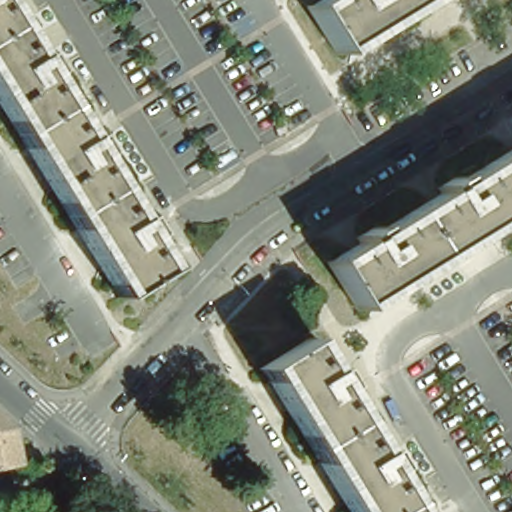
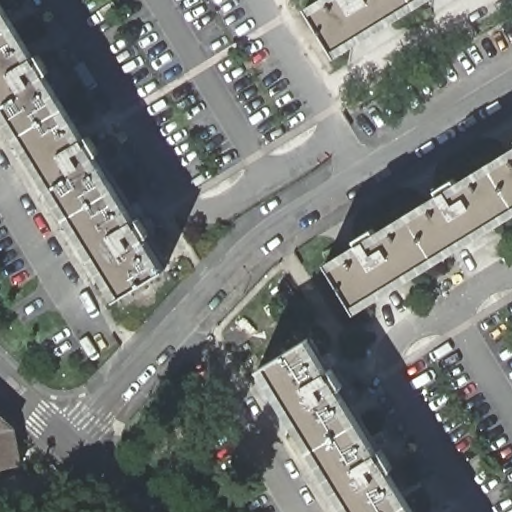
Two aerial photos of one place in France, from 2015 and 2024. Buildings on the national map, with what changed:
unchanged [(0,0),(6,11),(8,13),(14,24),(15,25),(0,34),(0,0)]
unchanged [(391,22),(349,49),(336,56),(307,9),(320,0),(414,0),(418,6),(391,22)]
unchanged [(414,0),(428,0),(418,6),(414,0)]
unchanged [(35,56),(39,54),(49,72),(46,75),(65,105),(15,136),(0,110),(0,34),(15,25),(28,45),(35,56)]
unchanged [(78,126),(84,137),(89,135),(100,153),(95,155),(115,187),(65,218),(49,191),(24,150),(15,136),(65,105),(78,126)]
unchanged [(488,162),(507,150),(512,147),(512,202),(488,162)]
unchanged [(512,202),(512,215),(492,228),(451,252),(437,261),(406,212),(426,200),(439,192),(436,189),(454,178),(456,181),(488,162),(512,202)]
unchanged [(128,207),(134,219),(139,216),(150,235),(145,237),(158,256),(164,267),(165,268),(116,299),(114,296),(109,288),(99,272),(74,231),(65,218),(115,187),(128,207)]
unchanged [(410,277),(369,302),(356,311),(325,261),(344,250),(358,242),(355,239),(372,228),(374,231),(406,212),(437,261),(410,277)]
unchanged [(341,430),(309,450),(292,424),(267,382),(259,369),(308,338),(319,357),(327,370),(331,368),(342,386),(339,388),(349,406),(351,408),(358,420),(341,430)]
unchanged [(0,436),(0,420),(14,433),(0,436)]
unchanged [(369,438),(377,451),(382,449),(392,467),(388,470),(408,501),(389,512),(346,512),(342,505),(317,463),(309,450),(341,430),(358,420),(369,438)]
unchanged [(0,473),(0,436),(14,433),(21,469),(0,473)]
unchanged [(415,512),(389,512),(408,501),(415,512)]

